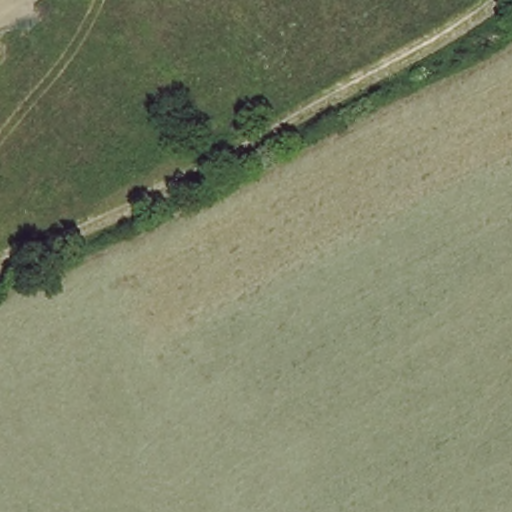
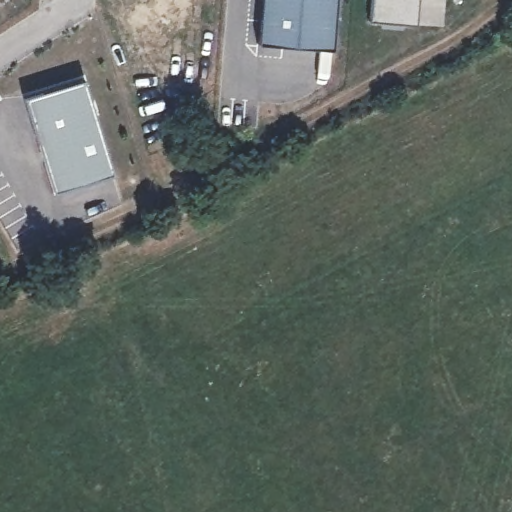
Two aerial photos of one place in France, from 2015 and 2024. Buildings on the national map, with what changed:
new [(257,44),(260,0),(334,0),(330,49),(257,44)]
new [(365,34),(366,0),(413,0),(412,36),(365,34)]
new [(111,174),(52,191),(24,98),(80,80),(111,174)]

